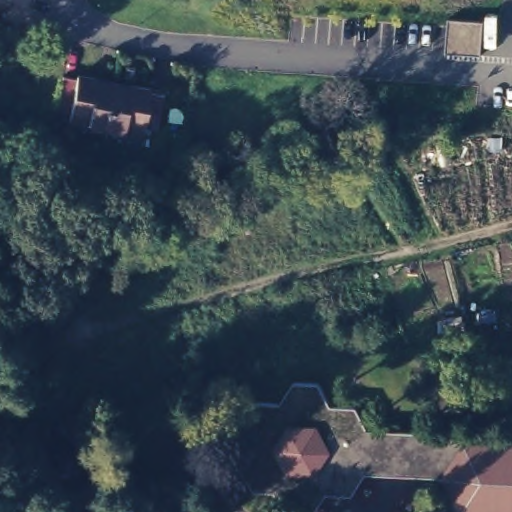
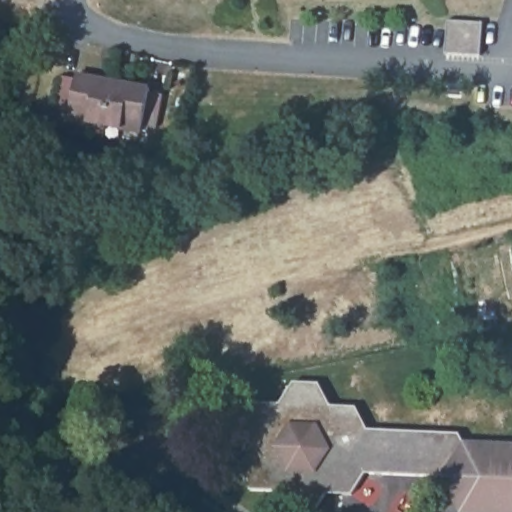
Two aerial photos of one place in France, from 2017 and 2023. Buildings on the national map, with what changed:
unchanged [(481,54),(443,51),(446,19),(485,21),(481,54)]
unchanged [(154,92),(168,95),(162,128),(148,125),(147,133),(74,120),(75,112),(61,110),(67,76),(81,79),(82,75),(101,79),(118,82),(135,85),(155,89),(154,92)]
unchanged [(314,512),(286,512),(275,491),(251,490),(238,467),(252,446),(240,423),(254,402),(280,403),(293,382),(319,383),(331,405),(356,406),(368,429),(460,433),(465,443),(442,476),(366,473),(352,495),(326,494),(314,512)]
unchanged [(442,476),(465,443),(512,445),(512,512),(460,512),(442,476)]

